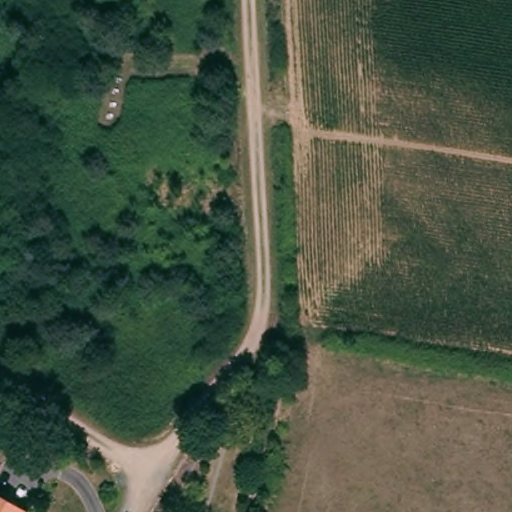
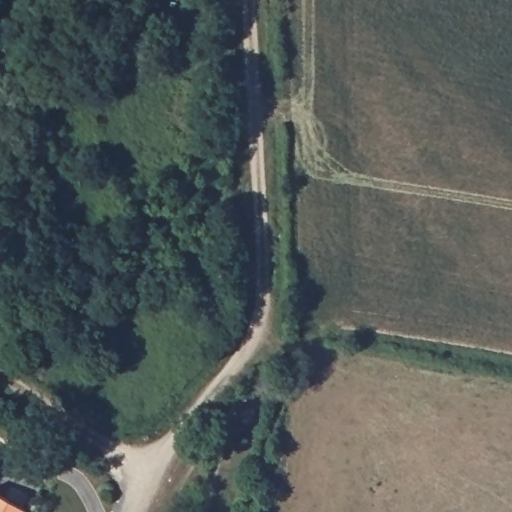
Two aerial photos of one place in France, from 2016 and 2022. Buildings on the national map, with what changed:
unchanged [(22,512),(0,512),(0,494),(24,507),(22,512)]

